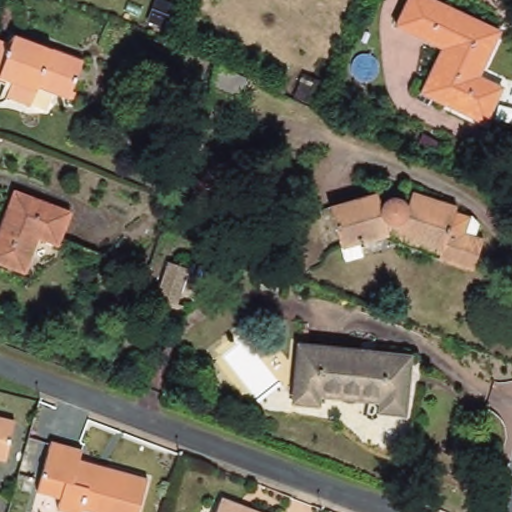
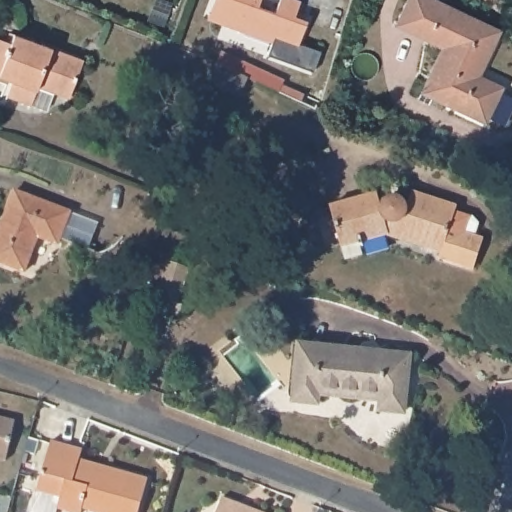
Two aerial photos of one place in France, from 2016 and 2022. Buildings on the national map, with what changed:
new [(295,16),(308,20),(300,43),(322,51),(315,72),(268,55),(275,37),(231,21),(210,13),(214,0),(301,0),(295,16)]
unchanged [(416,104),(420,96),(441,51),(395,29),(408,0),(427,0),(500,34),(478,80),(502,91),(485,127),(433,102),(429,110),(416,104)]
unchanged [(31,110),(4,100),(8,91),(0,87),(0,44),(11,49),(15,38),(83,64),(69,103),(53,97),(46,115),(31,110)]
unchanged [(220,56),(281,84),(278,91),(217,62),(220,56)]
unchanged [(323,81),(313,104),(294,95),(305,72),(323,81)]
unchanged [(204,94),(195,117),(182,113),(190,89),(204,94)]
unchanged [(220,172),(200,223),(182,217),(202,165),(220,172)]
unchanged [(345,260),(340,247),(329,205),(376,191),(380,205),(384,199),(389,196),(395,195),(400,197),(405,201),(406,204),(411,190),(456,204),(449,226),(482,237),(473,270),(438,257),(441,251),(423,246),(387,234),(359,242),(363,255),(345,260)]
unchanged [(70,216),(58,249),(37,242),(25,275),(0,265),(0,231),(14,195),(70,216)]
unchanged [(189,267),(177,302),(182,305),(179,315),(161,310),(165,299),(156,296),(169,261),(189,267)]
unchanged [(410,353),(403,411),(380,408),(381,400),(317,393),(316,402),(292,399),(300,342),(410,353)]
unchanged [(19,425),(9,465),(0,463),(0,420),(19,425)]
unchanged [(80,462),(96,466),(95,471),(106,473),(107,468),(150,480),(141,512),(93,512),(84,510),(83,512),(71,512),(60,509),(63,497),(40,491),(52,442),(84,450),(80,462)]
unchanged [(218,512),(224,497),(262,512),(218,512)]

